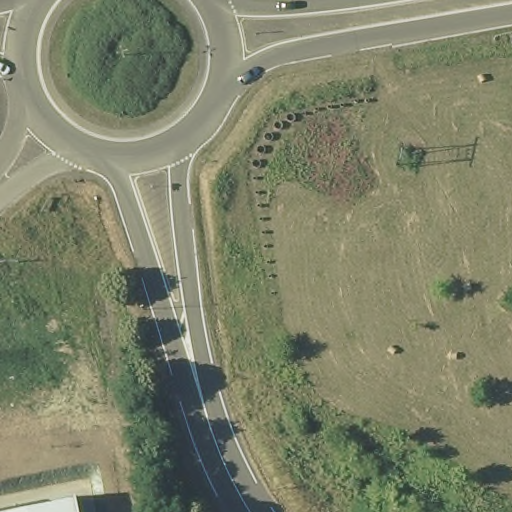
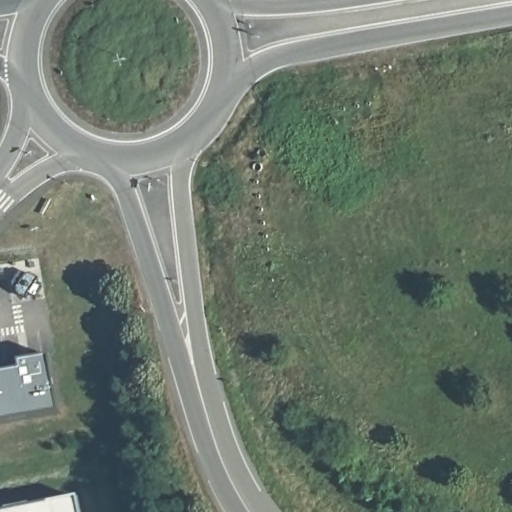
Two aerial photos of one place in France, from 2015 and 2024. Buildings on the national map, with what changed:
new [(0,369),(21,366),(20,356),(44,352),(53,407),(0,417),(0,369)]
unchanged [(81,512),(13,512),(78,499),(81,512)]

